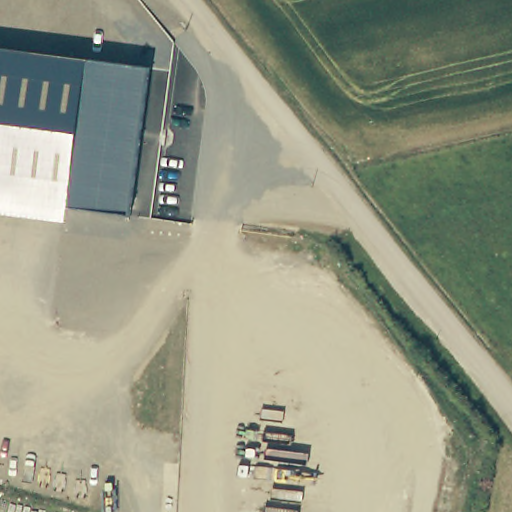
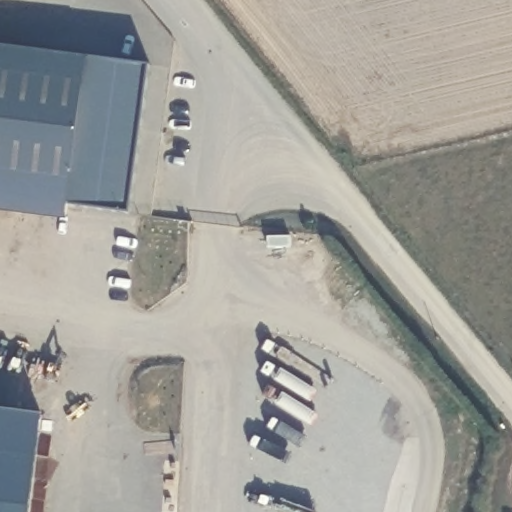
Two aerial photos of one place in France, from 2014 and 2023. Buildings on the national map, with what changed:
unchanged [(69,206),(67,222),(0,213),(0,48),(88,59),(149,69),(131,214),(69,206)]
new [(41,419),(29,512),(0,512),(0,413),(41,419)]

